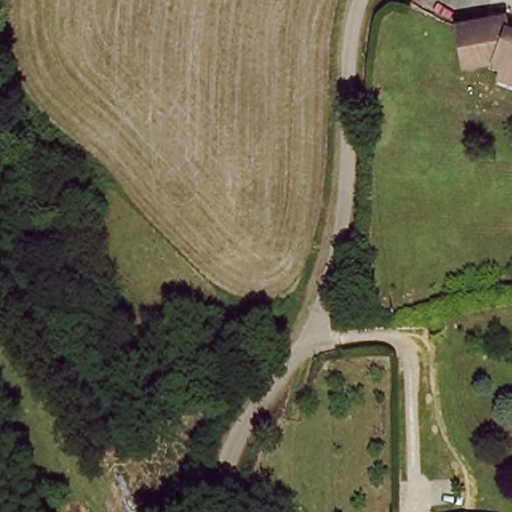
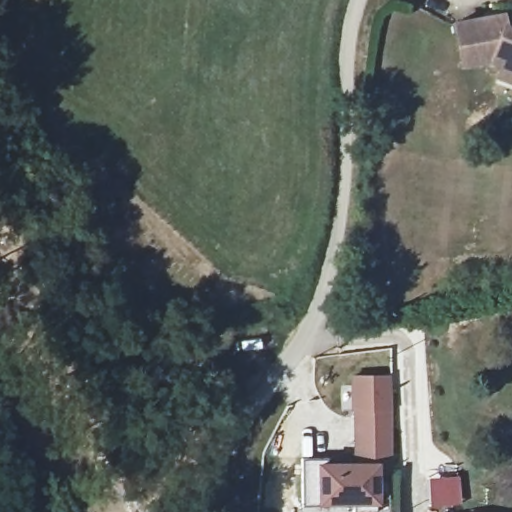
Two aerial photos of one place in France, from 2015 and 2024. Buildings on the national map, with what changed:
unchanged [(506,71),(496,62),(466,67),(459,27),(508,17),(511,28),(512,29),(512,81),(504,78),(506,71)]
new [(320,458),(352,452),(351,375),(391,375),(390,474),(378,474),(379,504),(380,512),(379,512),(351,512),(348,504),(317,504),(318,506),(298,505),(297,457),(320,458)]

